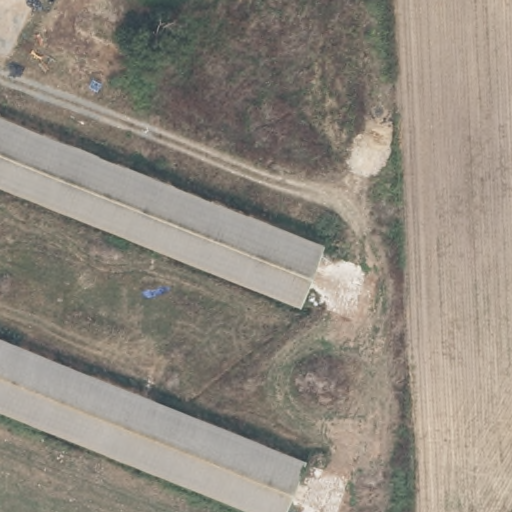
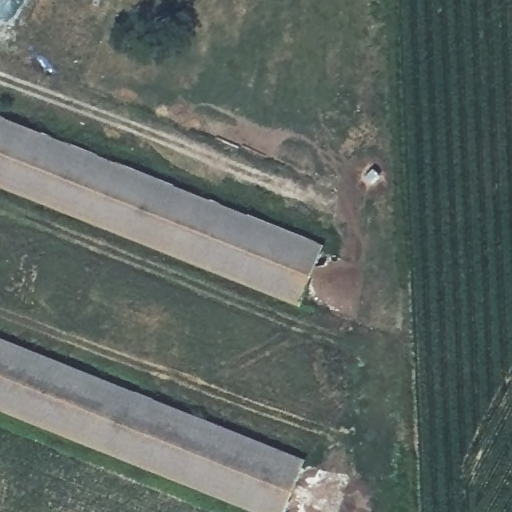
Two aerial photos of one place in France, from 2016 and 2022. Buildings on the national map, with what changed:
unchanged [(0,178),(0,115),(325,254),(303,308),(0,178)]
unchanged [(0,404),(0,340),(302,469),(284,512),(253,512),(0,404)]

